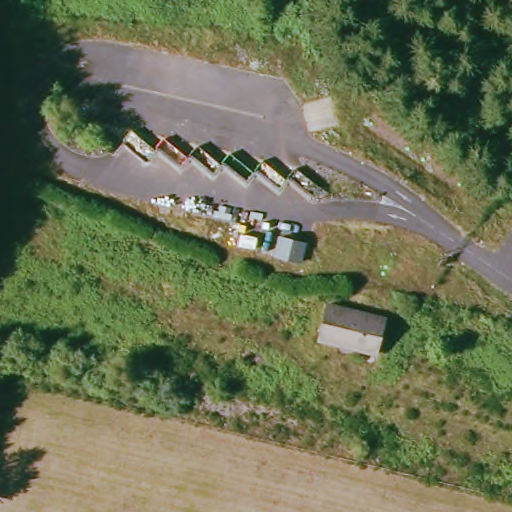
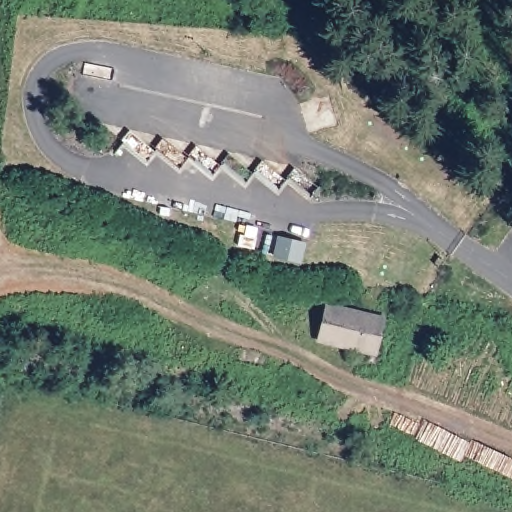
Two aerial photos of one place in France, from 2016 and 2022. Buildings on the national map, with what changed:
unchanged [(302,245),(299,265),(272,261),(275,240),(302,245)]
unchanged [(321,344),(329,306),(386,321),(381,358),(321,344)]

